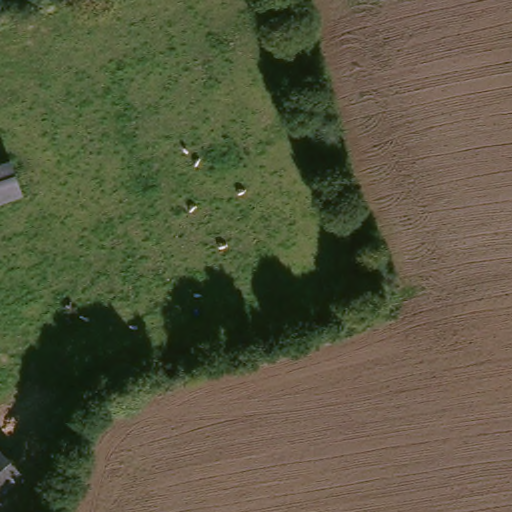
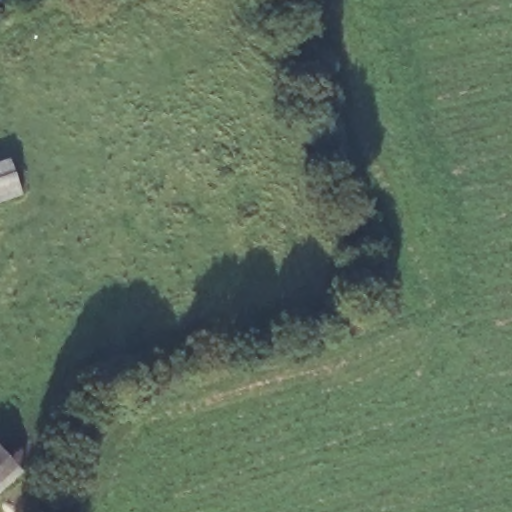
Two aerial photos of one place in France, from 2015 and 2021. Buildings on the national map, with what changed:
unchanged [(0,201),(0,166),(11,162),(23,193),(0,201)]
unchanged [(19,477),(0,493),(0,454),(19,477)]

